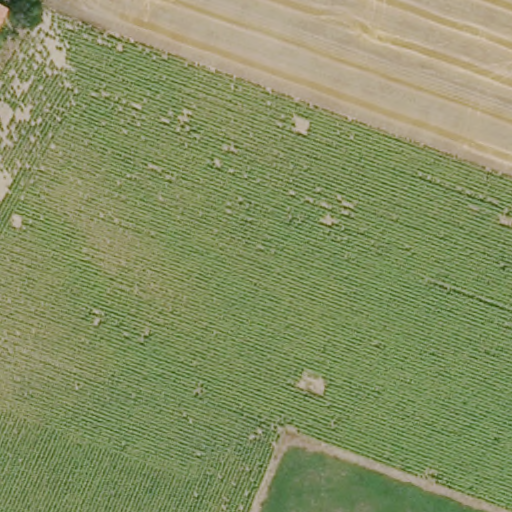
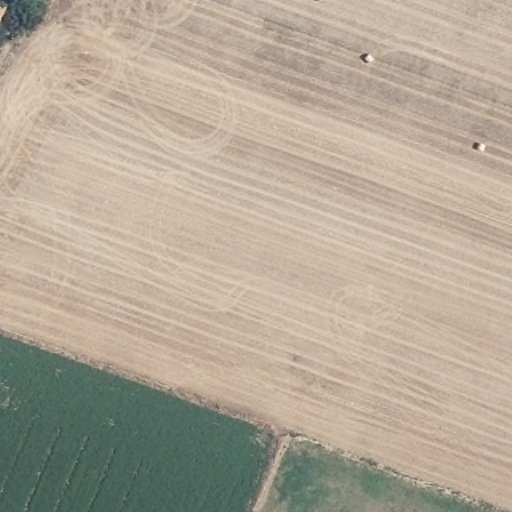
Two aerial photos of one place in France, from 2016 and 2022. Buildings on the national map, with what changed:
unchanged [(0,17),(0,0),(3,0),(7,2),(0,17)]

